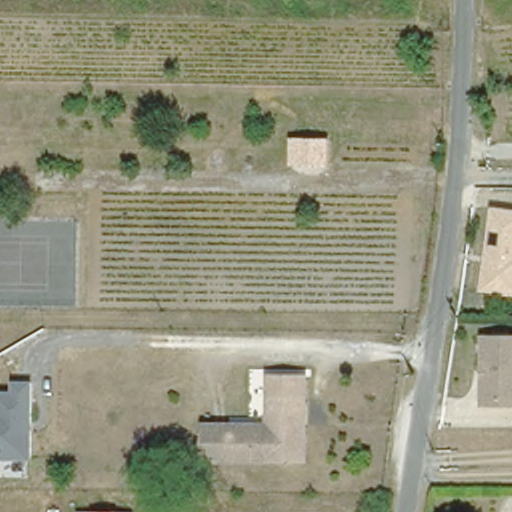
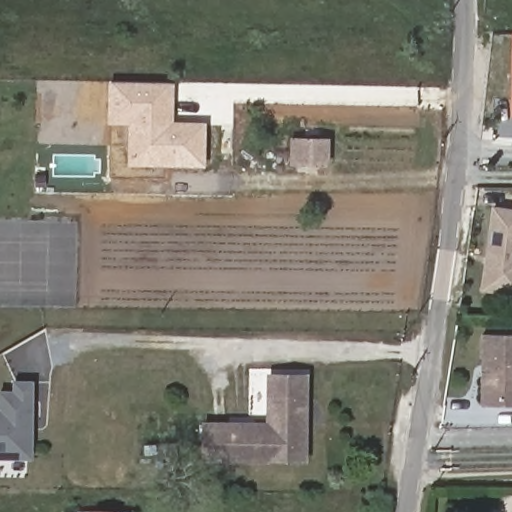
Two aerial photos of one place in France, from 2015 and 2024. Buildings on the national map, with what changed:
new [(511,116),(512,75),(512,116),(511,116)]
new [(205,167),(128,165),(129,125),(108,124),(109,81),(174,83),(174,121),(207,122),(205,167)]
unchanged [(330,167),(291,167),(291,139),(330,139),(330,167)]
unchanged [(481,292),(492,206),(512,209),(512,296),(481,292)]
unchanged [(481,362),(481,331),(512,331),(512,402),(481,402),(481,375),(481,368),(481,362)]
unchanged [(247,425),(271,425),(271,397),(270,375),(307,376),(307,397),(306,460),(242,460),(207,459),(207,424),(247,425)]
unchanged [(0,458),(0,396),(1,387),(17,387),(19,378),(36,378),(37,460),(0,458)]
unchanged [(119,510),(119,512),(96,512),(96,510),(119,510)]

